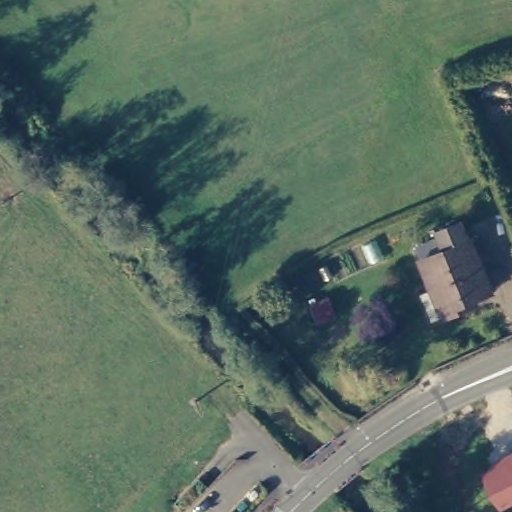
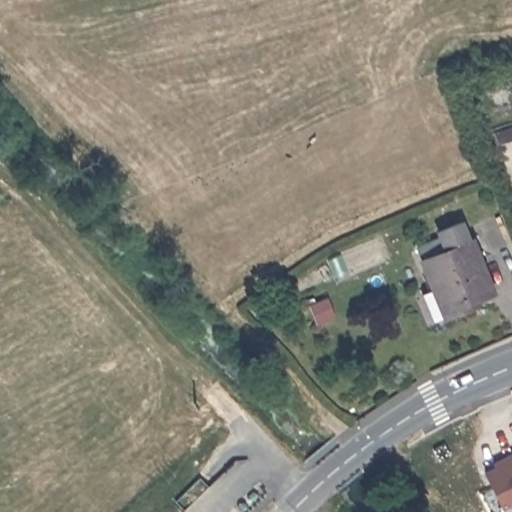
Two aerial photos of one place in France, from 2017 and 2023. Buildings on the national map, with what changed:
unchanged [(476,238),(496,288),(480,296),(480,301),(447,315),(435,286),(438,285),(428,256),(476,238)]
unchanged [(481,469),(512,451),(512,503),(501,508),(481,469)]

